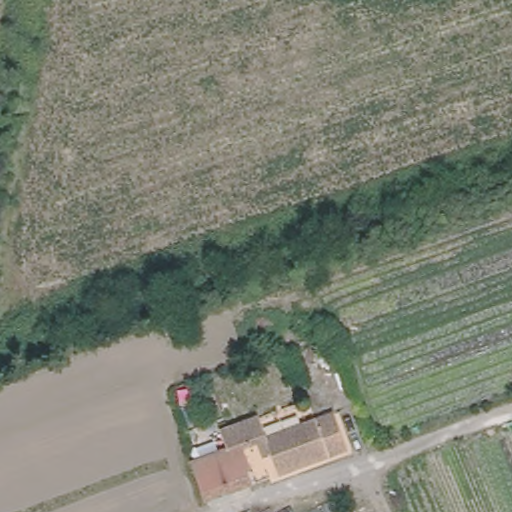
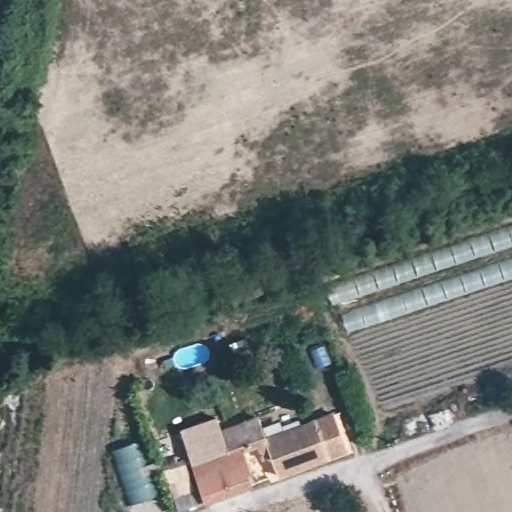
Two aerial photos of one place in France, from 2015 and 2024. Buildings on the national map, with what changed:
new [(512,223),(512,244),(332,303),(326,283),(512,223)]
new [(341,313),(512,256),(512,278),(347,332),(341,313)]
unchanged [(226,449),(219,428),(258,415),(268,433),(336,412),(354,452),(281,480),(269,448),(246,455),(255,489),(207,506),(190,462),(226,449)]
new [(178,428),(215,415),(219,428),(226,449),(190,462),(178,428)]
demolished [(342,495),(349,512),(309,512),(342,495)]

